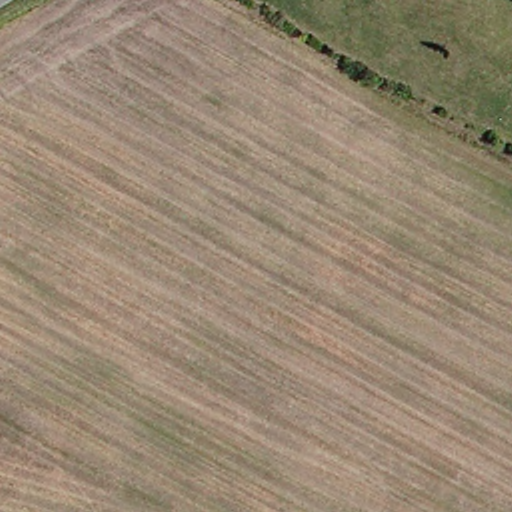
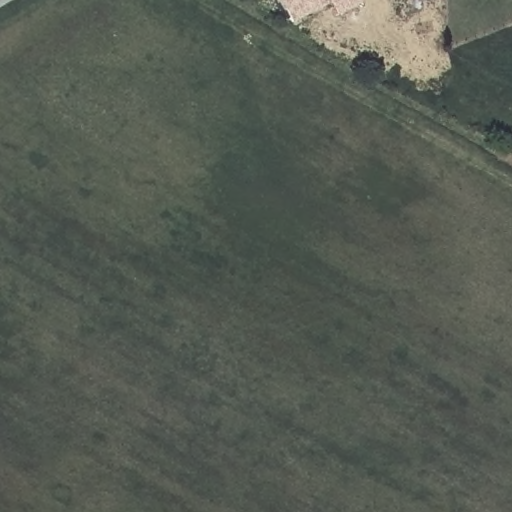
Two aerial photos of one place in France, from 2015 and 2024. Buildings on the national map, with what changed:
new [(284,0),(364,0),(366,3),(340,16),(333,3),(297,21),(284,0)]

